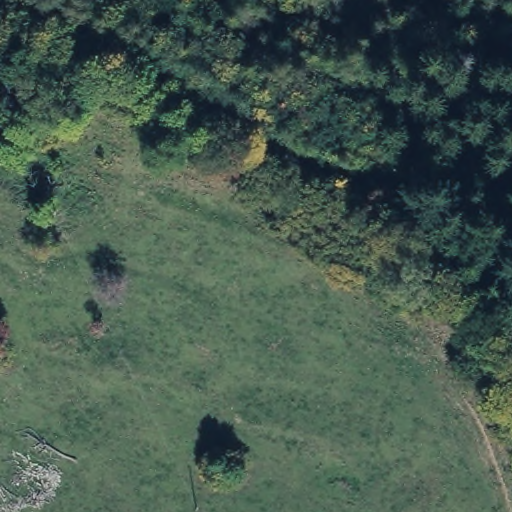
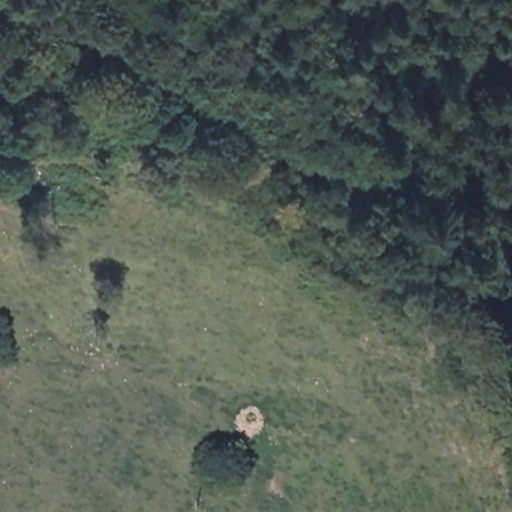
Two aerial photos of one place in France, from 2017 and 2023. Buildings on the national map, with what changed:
unchanged [(77,94),(82,137),(0,148),(0,104),(77,94)]

